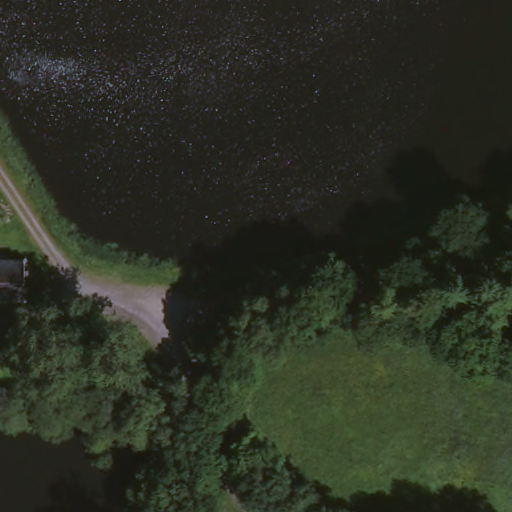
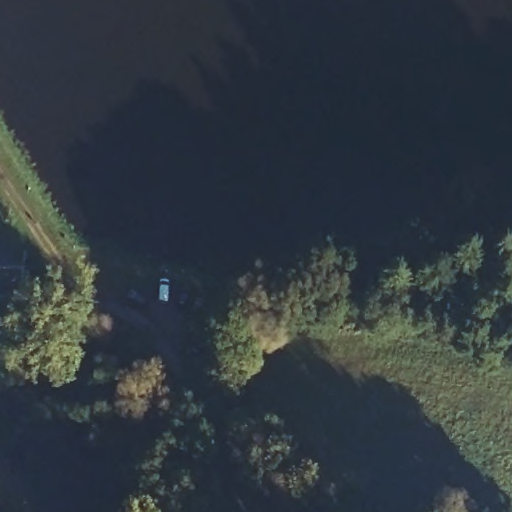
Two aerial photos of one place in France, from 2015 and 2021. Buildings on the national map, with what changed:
unchanged [(21,290),(0,291),(0,251),(17,250),(21,290)]

